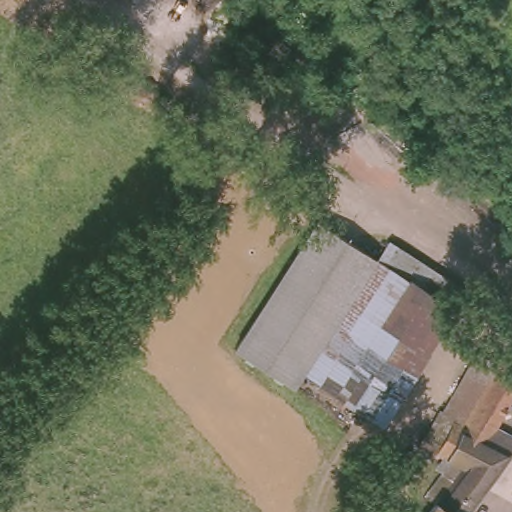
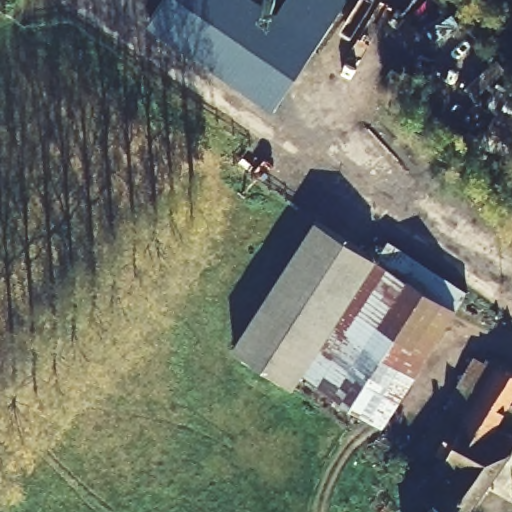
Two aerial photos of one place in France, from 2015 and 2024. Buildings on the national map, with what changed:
new [(283,0),(345,0),(274,105),(148,20),(162,0),(266,0),(278,8),(283,0)]
unchanged [(294,384),(233,345),(315,217),(376,256),(388,239),(444,275),(436,289),(456,302),(382,423),(303,370),(294,384)]
unchanged [(512,428),(512,446),(464,512),(424,512),(437,495),(429,488),(452,453),(449,451),(439,444),(459,415),(442,403),(471,366),(487,375),(502,355),(512,361),(512,394),(498,420),(512,428)]

